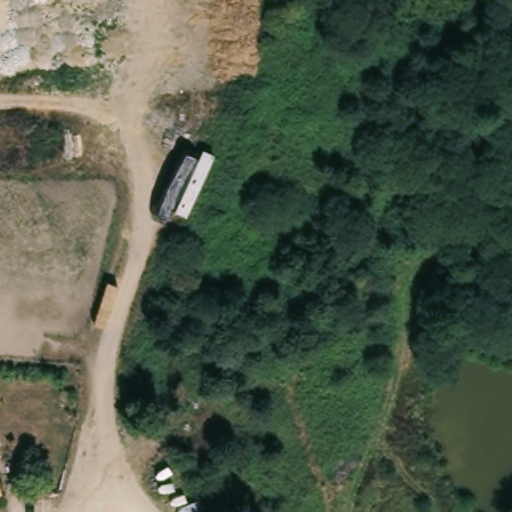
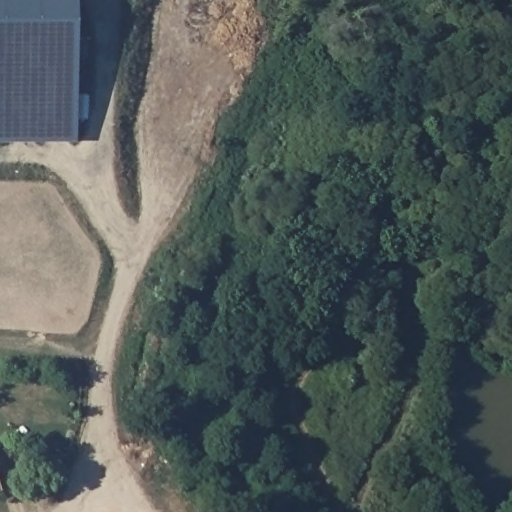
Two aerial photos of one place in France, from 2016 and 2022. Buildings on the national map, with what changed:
new [(72,2),(73,145),(0,146),(0,2),(72,2)]
unchanged [(8,492),(0,494),(0,470),(8,492)]

